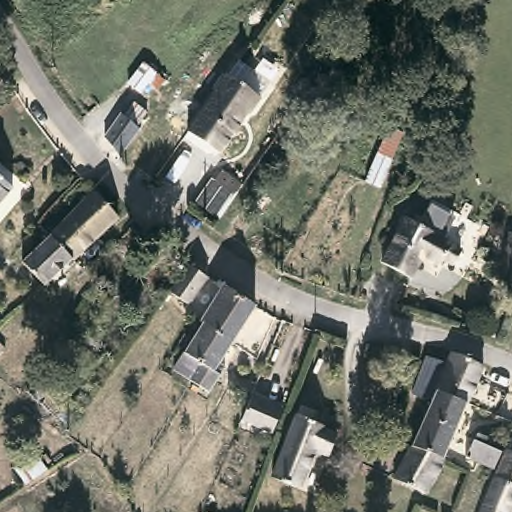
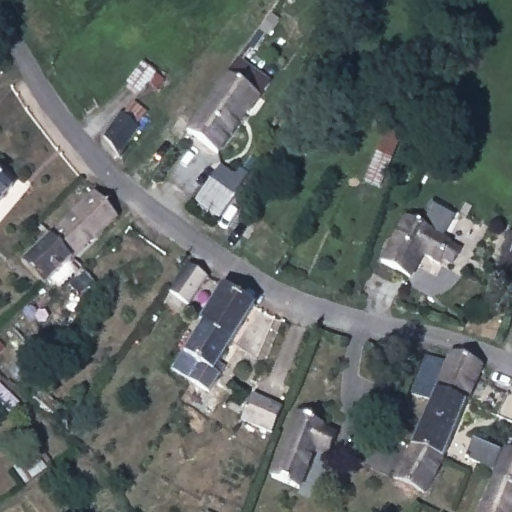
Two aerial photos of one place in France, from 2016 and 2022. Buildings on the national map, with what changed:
unchanged [(268,83),(257,98),(259,99),(249,114),(247,113),(217,155),(187,132),(238,61),(268,83)]
unchanged [(154,76),(134,95),(124,85),(142,66),(154,76)]
unchanged [(148,127),(130,148),(120,137),(110,125),(126,104),(148,127)]
unchanged [(401,138),(377,193),(363,187),(385,131),(401,138)]
unchanged [(243,181),(218,215),(197,199),(213,175),(218,178),(224,170),(243,181)]
unchanged [(11,189),(0,202),(0,179),(11,189)]
unchanged [(96,191),(117,211),(70,259),(50,236),(96,191)]
unchanged [(431,229),(431,231),(451,240),(450,241),(458,245),(451,259),(441,255),(437,262),(420,256),(411,279),(381,265),(402,216),(431,229)]
unchanged [(70,259),(45,284),(24,261),(50,236),(70,259)]
unchanged [(512,277),(502,275),(510,246),(512,246),(512,277)]
unchanged [(204,278),(186,304),(169,293),(186,268),(204,278)]
unchanged [(207,320),(204,318),(226,285),(256,305),(255,305),(259,308),(237,341),(207,320)]
unchanged [(224,361),(229,365),(213,387),(178,364),(207,320),(237,341),(224,361)]
unchanged [(437,385),(432,398),(413,390),(425,355),(447,362),(453,350),(486,361),(481,375),(471,397),(437,385)]
unchanged [(446,455),(415,442),(432,398),(437,385),(471,397),(446,455)]
unchanged [(283,405),(273,430),(244,418),(255,394),(283,405)]
unchanged [(320,426),(319,430),(332,435),(325,453),(312,448),(297,490),(268,479),(291,415),(320,426)]
unchanged [(501,442),(489,469),(466,459),(478,432),(501,442)]
unchanged [(430,486),(427,492),(396,479),(415,442),(446,455),(430,486)]
unchanged [(512,494),(502,512),(475,512),(491,476),(504,448),(512,452),(512,494)]

